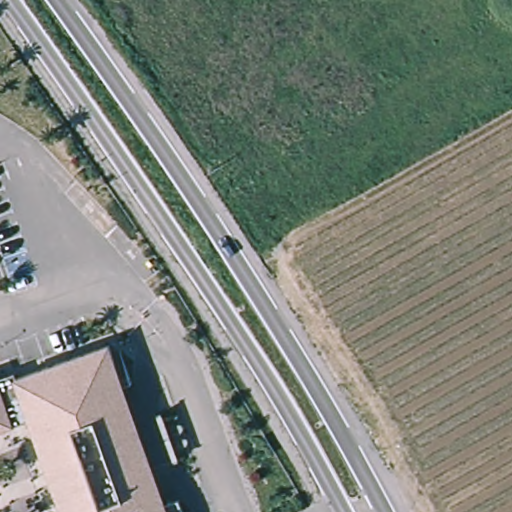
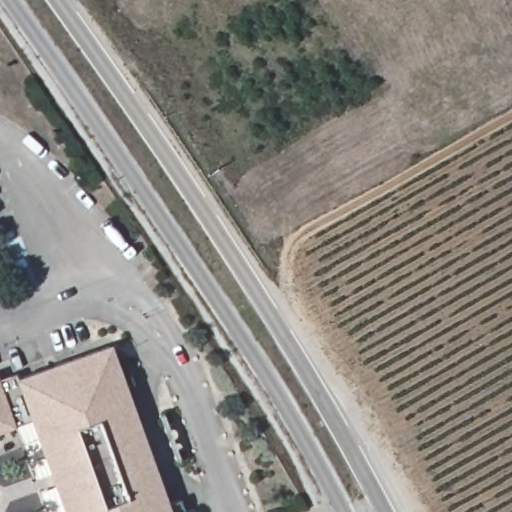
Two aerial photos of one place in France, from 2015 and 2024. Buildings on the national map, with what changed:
unchanged [(41,492),(49,488),(46,480),(38,483),(18,425),(0,431),(0,385),(108,347),(111,355),(120,352),(132,385),(118,390),(161,507),(179,501),(183,512),(48,512),(41,492)]

